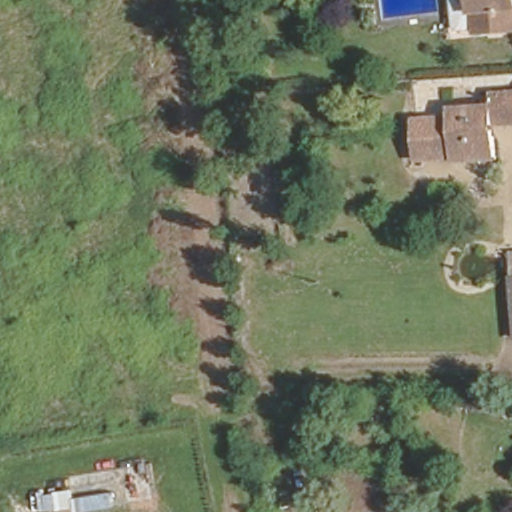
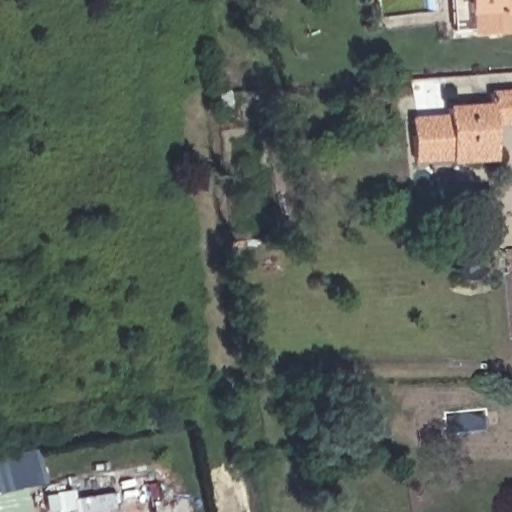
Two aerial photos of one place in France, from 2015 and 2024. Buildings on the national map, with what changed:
unchanged [(469,22),(468,0),(512,0),(512,16),(469,22)]
unchanged [(492,119),(495,146),(478,147),(479,155),(447,158),(446,152),(410,156),(405,121),(443,116),(441,104),(453,102),(452,92),(512,84),(512,116),(492,119)]
unchanged [(511,345),(507,248),(512,247),(512,344),(511,345)]
new [(46,483),(25,487),(30,512),(0,512),(0,458),(38,449),(46,483)]

